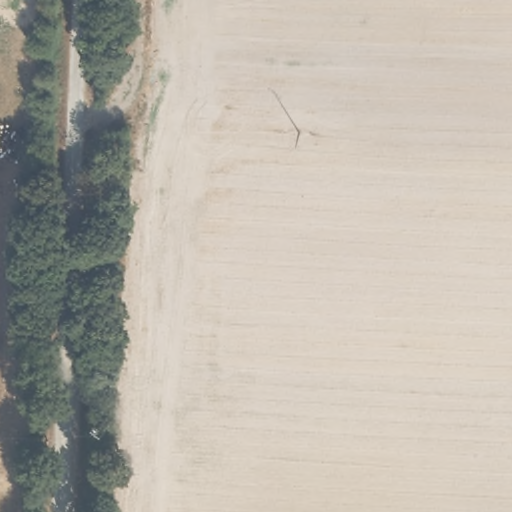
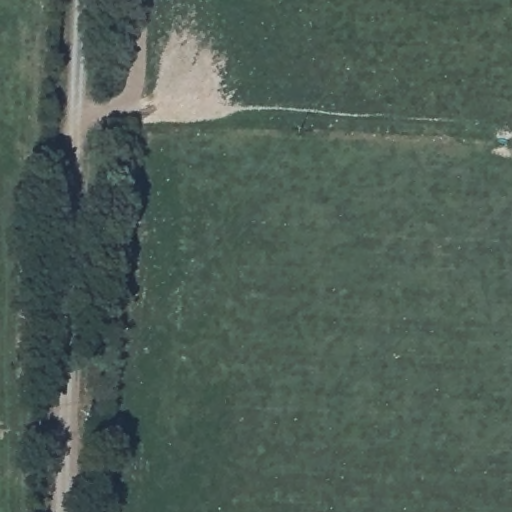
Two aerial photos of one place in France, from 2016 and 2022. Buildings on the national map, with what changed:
[]

